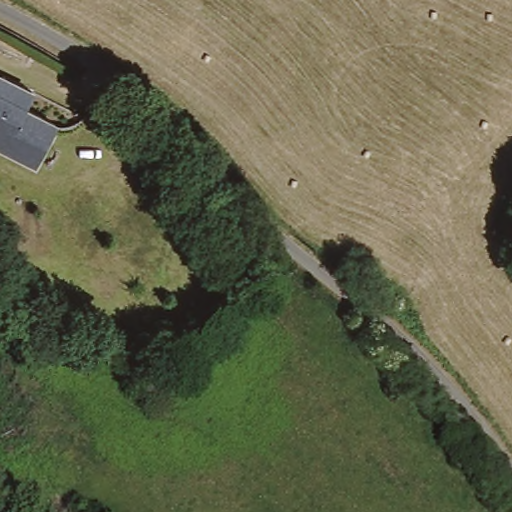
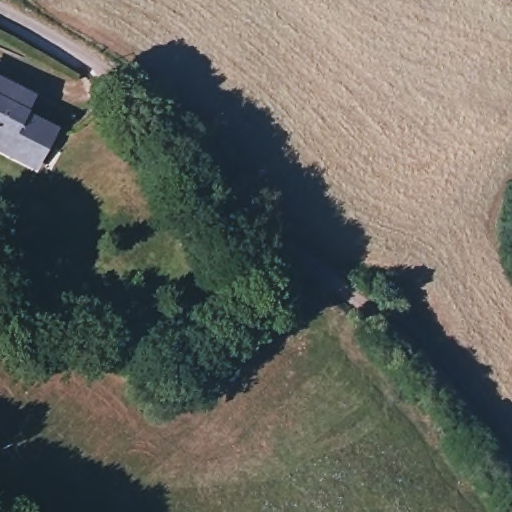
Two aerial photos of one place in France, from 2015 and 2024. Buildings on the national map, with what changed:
unchanged [(0,85),(0,72),(6,75),(0,85)]
unchanged [(0,151),(0,94),(41,120),(15,160),(0,151)]

